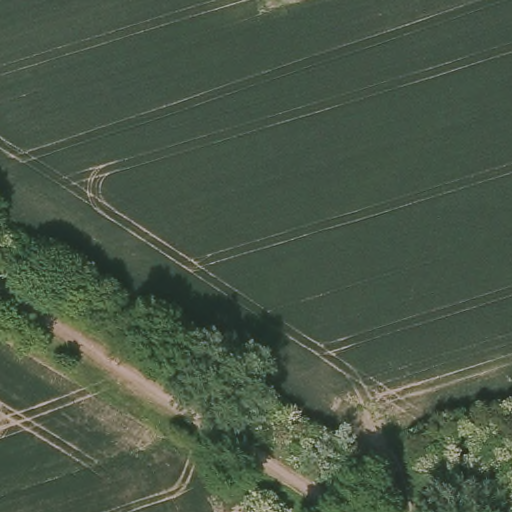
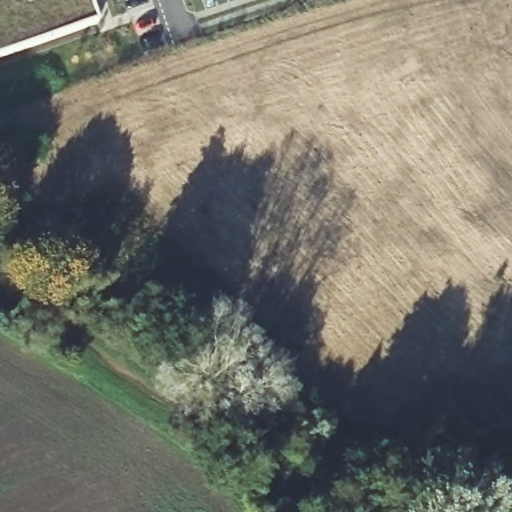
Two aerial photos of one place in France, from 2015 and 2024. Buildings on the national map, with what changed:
new [(97,19),(0,52),(0,0),(90,0),(97,19)]

